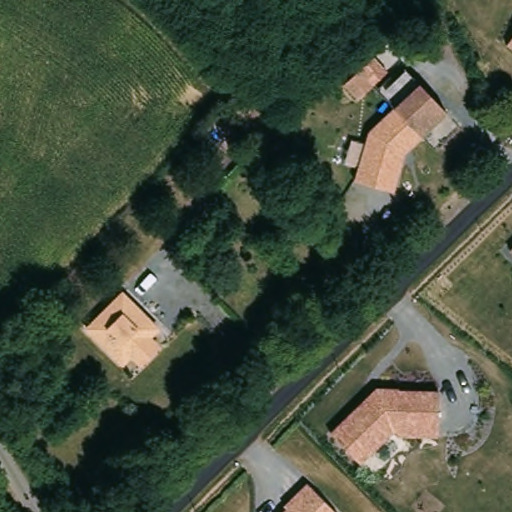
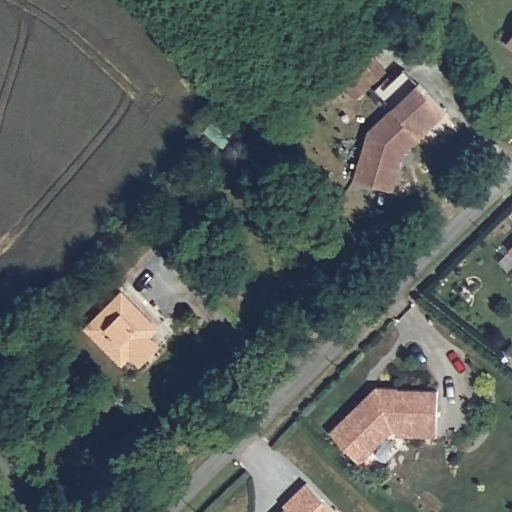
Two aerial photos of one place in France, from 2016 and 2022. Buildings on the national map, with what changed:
unchanged [(512,38),(512,50),(507,45),(512,38)]
unchanged [(393,108),(419,84),(446,114),(423,135),(402,154),(396,190),(357,182),(367,135),(393,108)]
unchanged [(512,246),(512,255),(508,250),(512,246)]
unchanged [(158,335),(165,341),(146,362),(139,356),(132,364),(128,360),(91,327),(124,290),(162,323),(165,326),(158,335)]
unchanged [(437,435),(393,433),(361,463),(331,432),(377,388),(439,391),(437,435)]
unchanged [(286,510),(282,506),(307,482),(336,512),(283,512),(286,510)]

